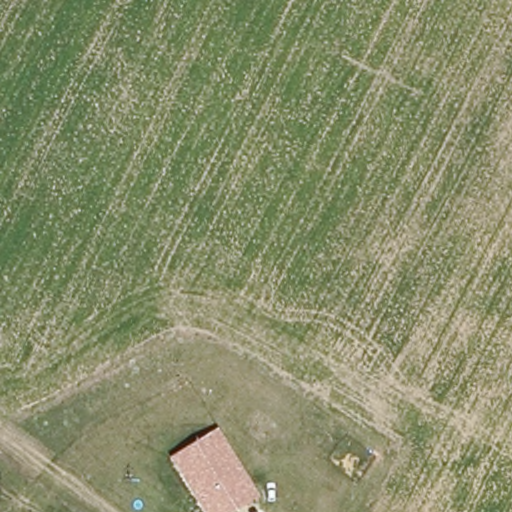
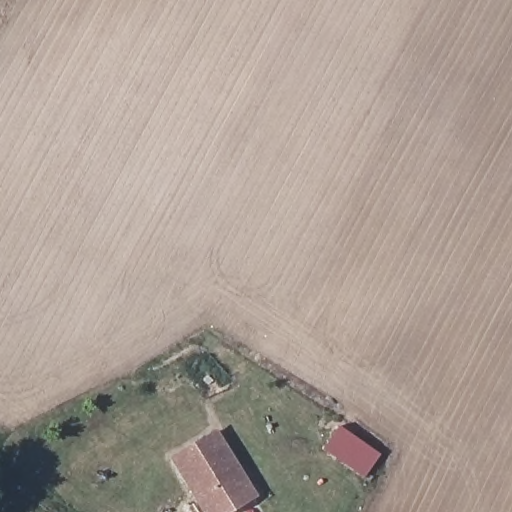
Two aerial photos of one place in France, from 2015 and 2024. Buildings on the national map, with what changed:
new [(340,428),(381,454),(365,478),(325,451),(340,428)]
unchanged [(219,429),(259,497),(235,512),(204,512),(171,458),(219,429)]

